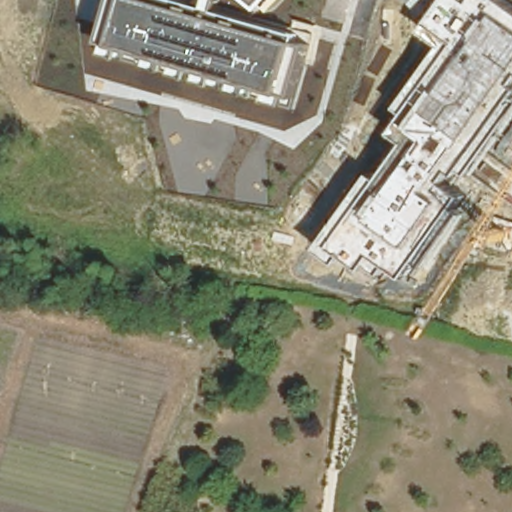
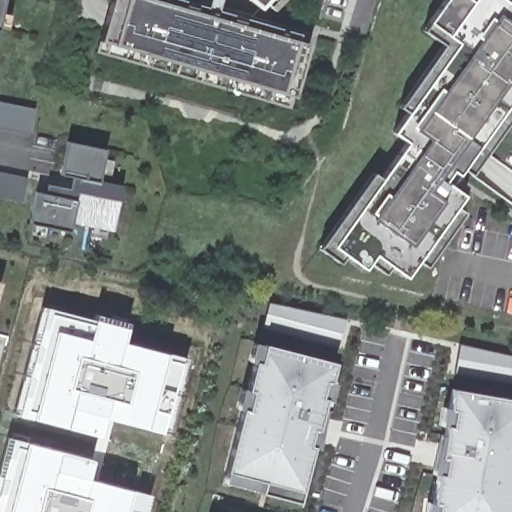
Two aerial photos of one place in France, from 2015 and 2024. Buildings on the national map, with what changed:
new [(0,0),(4,0),(0,21),(0,0)]
unchanged [(99,51),(114,0),(186,0),(310,35),(288,106),(99,51)]
unchanged [(262,8),(252,0),(270,0),(262,8)]
unchanged [(472,175),(455,164),(444,181),(465,195),(407,276),(375,254),(366,268),(344,253),(337,261),(318,247),(375,172),(382,177),(407,143),(391,132),(405,113),(398,107),(444,45),(422,29),(445,0),(505,0),(512,5),(512,119),(472,175)]
new [(0,127),(0,101),(35,108),(30,133),(0,127)]
new [(113,231),(72,222),(70,231),(31,223),(37,190),(75,198),(80,178),(62,174),(69,140),(107,148),(101,180),(122,184),(113,231)]
new [(0,197),(0,171),(27,176),(22,201),(0,197)]
new [(0,290),(0,284),(2,285),(0,290)]
new [(261,328),(269,297),(345,318),(337,349),(261,328)]
new [(12,413),(42,306),(94,319),(96,313),(128,323),(123,341),(167,353),(182,357),(162,433),(147,427),(105,416),(99,436),(31,419),(17,415),(12,413)]
new [(298,503),(260,493),(260,491),(244,487),(237,508),(223,504),(230,484),(223,482),(223,483),(217,482),(234,413),(230,412),(251,335),(336,357),(335,362),(330,381),(335,382),(333,387),(353,392),(351,402),(331,397),(330,401),(326,400),(323,408),(326,408),(322,431),(321,435),(340,439),(337,452),(317,447),(313,446),(302,491),(301,491),(298,503)]
new [(458,343),(512,353),(512,385),(453,375),(458,343)]
new [(426,506),(427,501),(432,502),(437,474),(432,473),(412,469),(415,455),(435,459),(435,456),(441,434),(443,435),(445,426),(440,425),(441,422),(421,418),(422,408),(442,411),(443,407),(448,407),(451,389),(512,399),(512,501),(510,512),(404,512),(406,502),(426,506)]
new [(93,460),(88,478),(131,489),(151,495),(146,512),(0,512),(0,460),(7,435),(27,442),(93,460)]

